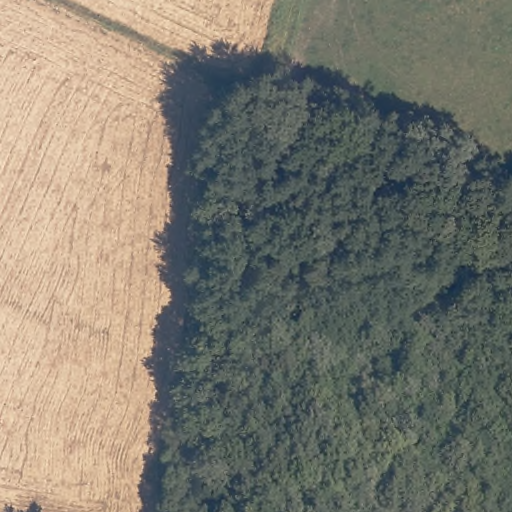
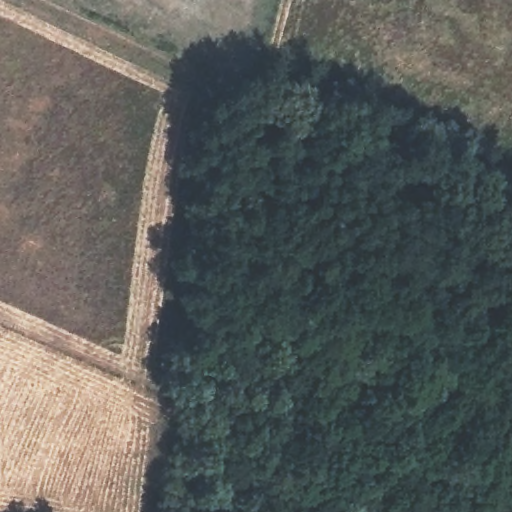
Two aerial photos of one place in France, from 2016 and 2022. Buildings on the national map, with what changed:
[]

